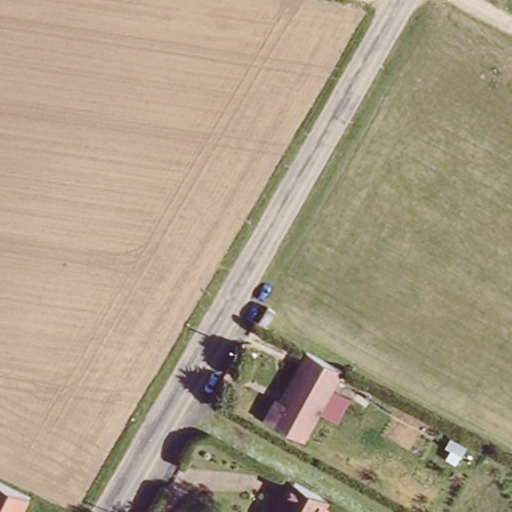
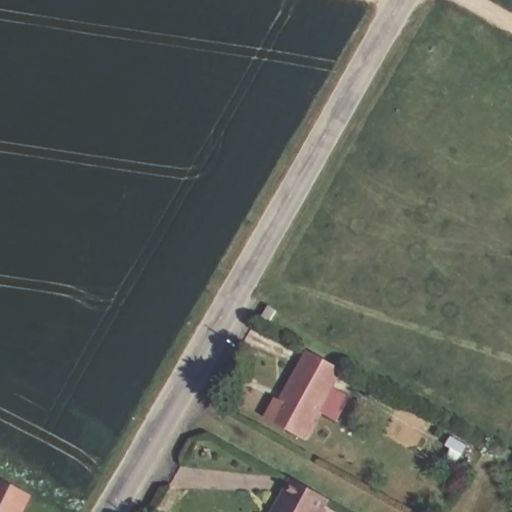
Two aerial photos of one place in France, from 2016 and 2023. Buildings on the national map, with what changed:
unchanged [(280,395),(283,397),(312,345),(349,366),(310,435),(270,413),(280,395)]
unchanged [(292,477),(298,480),(332,498),(324,512),(272,512),(282,493),(292,477)]
unchanged [(24,512),(0,512),(0,483),(32,498),(24,512)]

